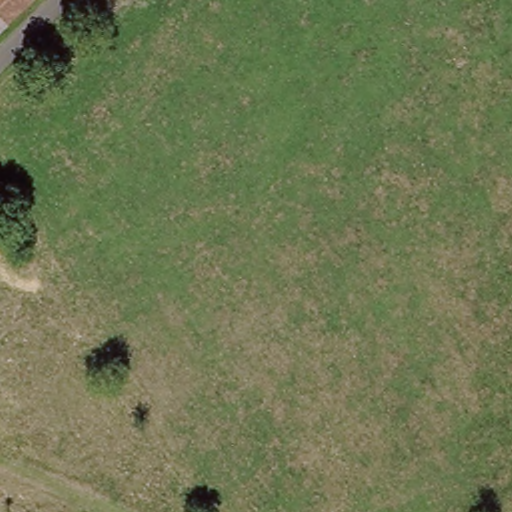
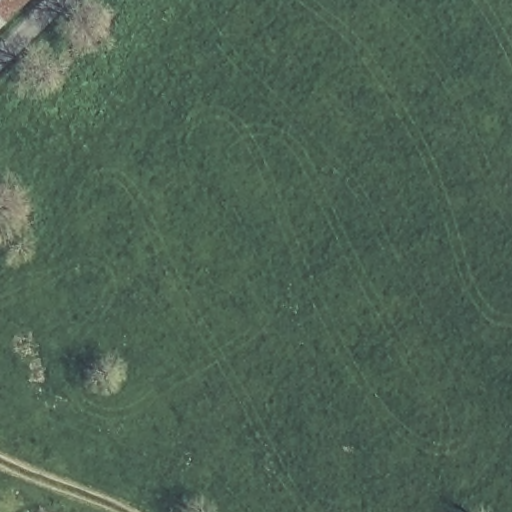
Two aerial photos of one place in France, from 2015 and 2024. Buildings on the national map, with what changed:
unchanged [(0,0),(27,0),(0,26),(0,0)]

